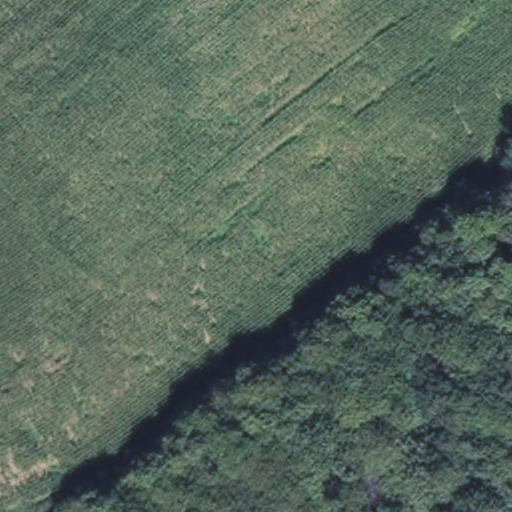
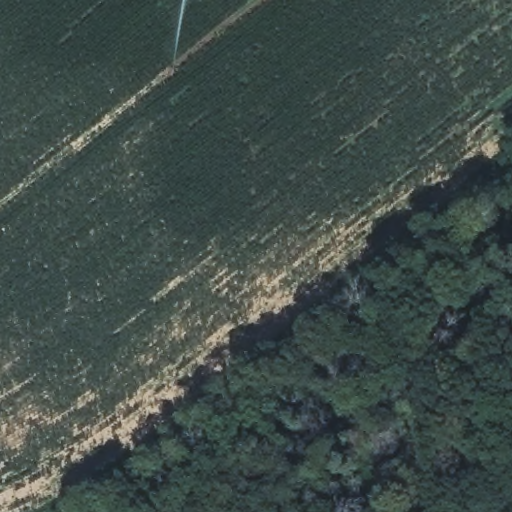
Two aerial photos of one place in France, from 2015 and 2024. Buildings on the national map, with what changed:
[]

